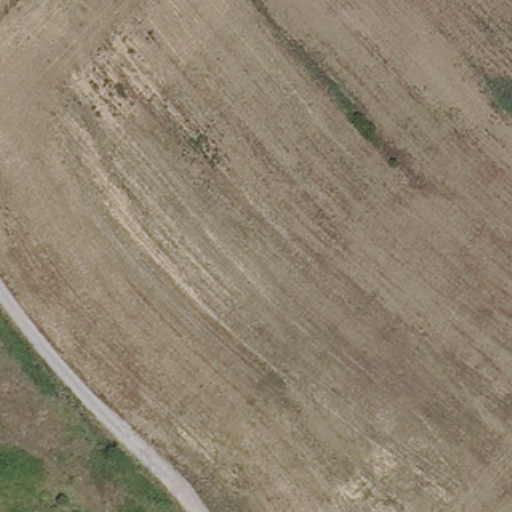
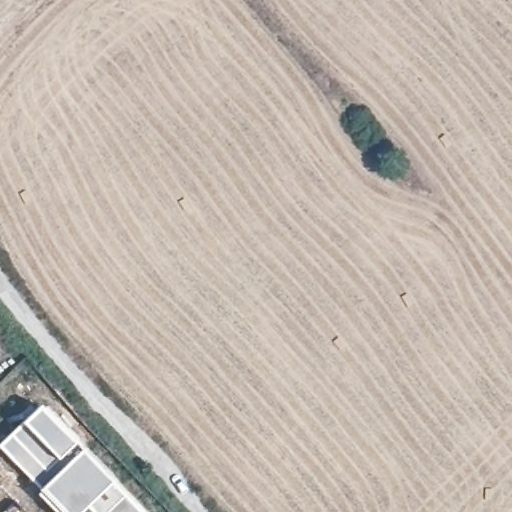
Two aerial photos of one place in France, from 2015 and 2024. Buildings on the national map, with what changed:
new [(73,443),(140,512),(95,512),(88,504),(79,512),(60,512),(39,490),(41,487),(0,447),(0,445),(40,406),(75,442),(73,443)]

